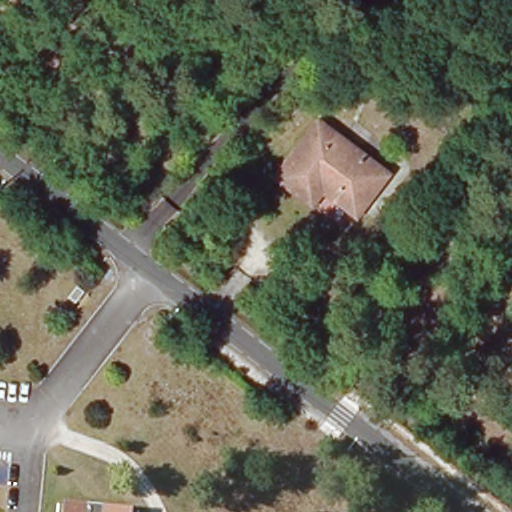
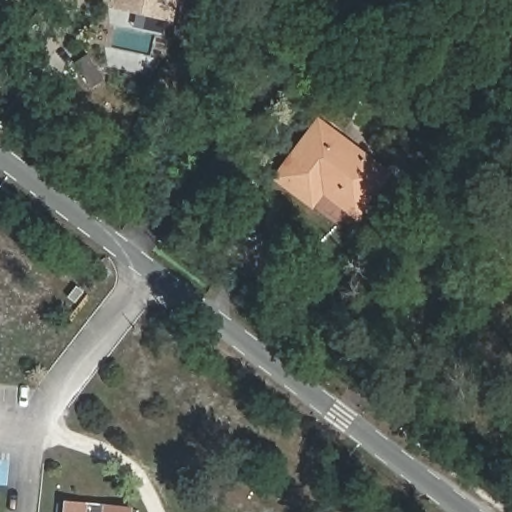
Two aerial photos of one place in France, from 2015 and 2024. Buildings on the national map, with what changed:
new [(110,0),(178,0),(174,21),(141,14),(109,6),(110,0)]
unchanged [(272,174),(313,120),(391,171),(362,210),(328,187),(317,204),(272,174)]
unchanged [(67,504),(136,512),(66,512),(67,504)]

